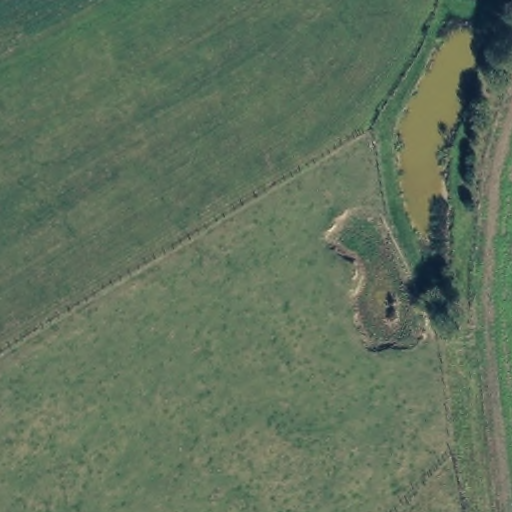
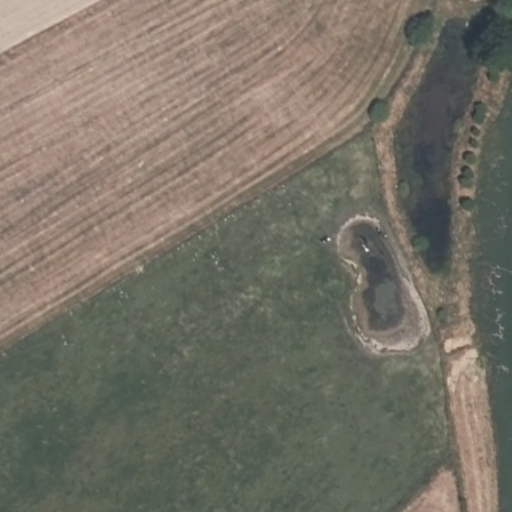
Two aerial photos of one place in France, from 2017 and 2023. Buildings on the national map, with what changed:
[]

